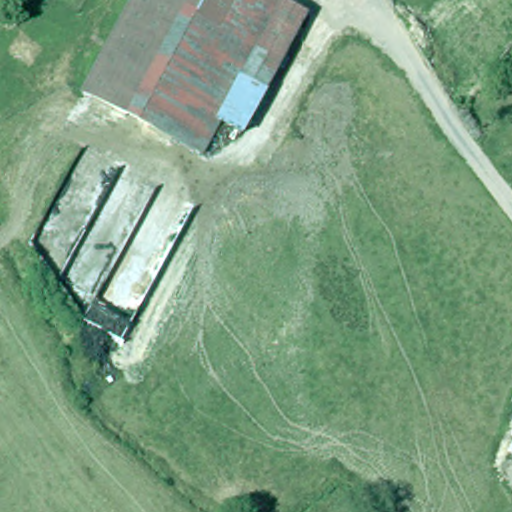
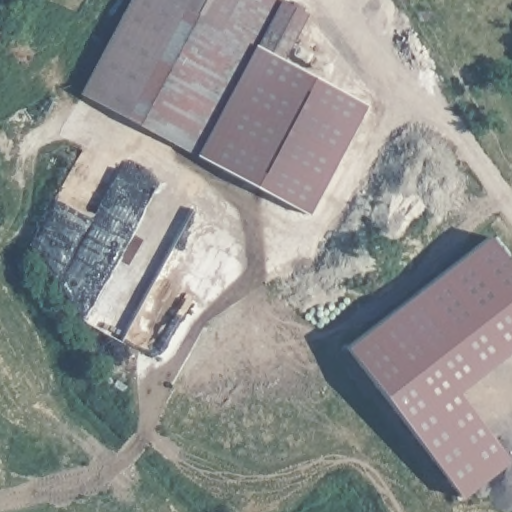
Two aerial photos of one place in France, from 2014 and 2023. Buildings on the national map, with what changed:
unchanged [(300,0),(304,1),(289,33),(273,64),(264,79),(243,69),(200,153),(83,93),(130,0),(300,0)]
new [(366,104),(309,213),(200,153),(243,69),(264,79),(273,64),(276,58),(366,104)]
new [(346,347),(489,235),(512,267),(512,348),(456,391),(509,460),(460,497),(346,347)]

